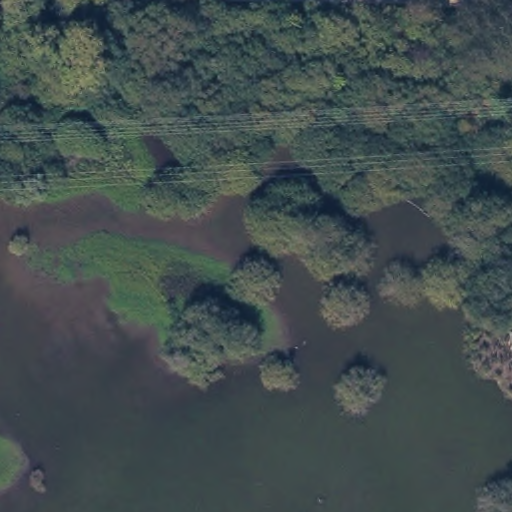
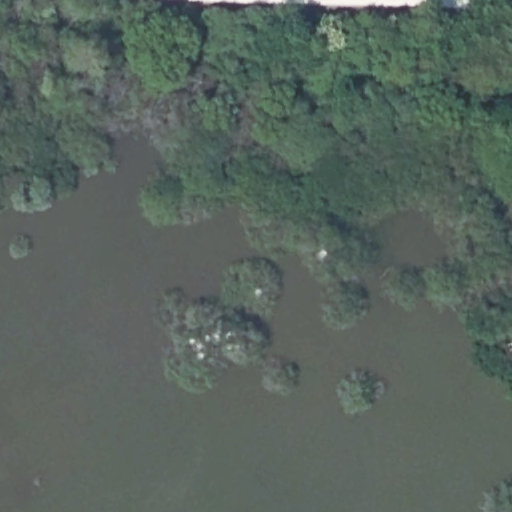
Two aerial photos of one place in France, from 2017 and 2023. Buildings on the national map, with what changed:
unchanged [(512,355),(508,345),(512,343),(512,355)]

